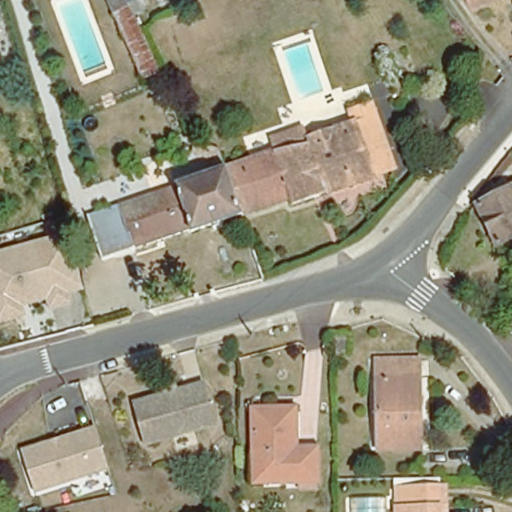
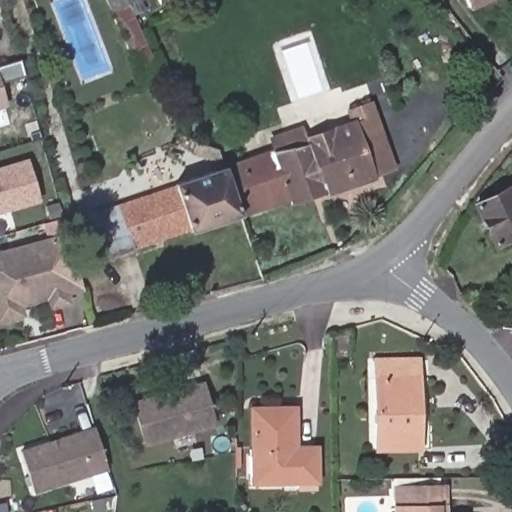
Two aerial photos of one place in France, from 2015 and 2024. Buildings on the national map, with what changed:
unchanged [(165,66),(150,72),(116,0),(134,0),(165,66)]
unchanged [(470,3),(469,0),(479,0),(470,3)]
new [(0,79),(9,106),(0,109),(0,79)]
unchanged [(271,135),(303,124),(307,136),(355,121),(351,108),(373,101),(382,128),(396,168),(374,175),(294,202),(292,197),(243,213),(242,212),(226,166),(275,149),(271,135)]
unchanged [(215,146),(221,149),(226,166),(242,212),(104,257),(90,213),(220,170),(217,157),(195,152),(197,139),(215,146)]
new [(0,169),(29,160),(40,199),(0,212),(0,169)]
unchanged [(479,198),(512,182),(512,232),(498,238),(479,198)]
unchanged [(71,294),(75,304),(51,310),(49,300),(27,306),(30,316),(0,324),(0,251),(68,232),(85,291),(71,294)]
unchanged [(337,333),(349,334),(350,354),(337,354),(337,333)]
unchanged [(421,439),(378,440),(377,348),(421,348),(421,439)]
unchanged [(217,424),(149,444),(136,403),(165,394),(164,389),(177,385),(179,390),(205,383),(217,424)]
unchanged [(254,448),(253,409),(296,408),(295,447),(319,447),(320,481),(262,481),(254,481),(254,448)]
unchanged [(110,470),(95,475),(100,485),(76,493),(72,482),(37,493),(22,449),(96,426),(110,470)]
unchanged [(438,481),(438,499),(448,499),(448,512),(397,512),(397,481),(438,481)]

